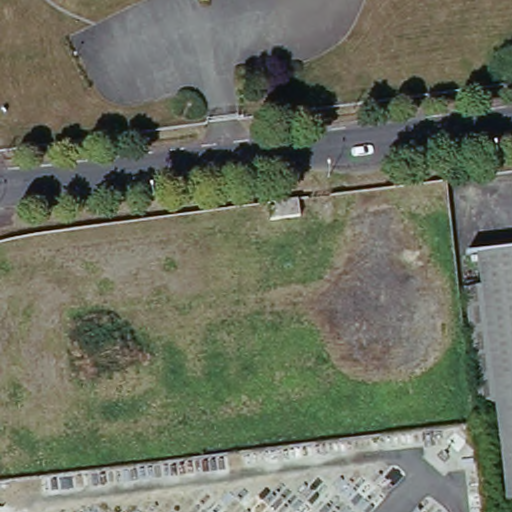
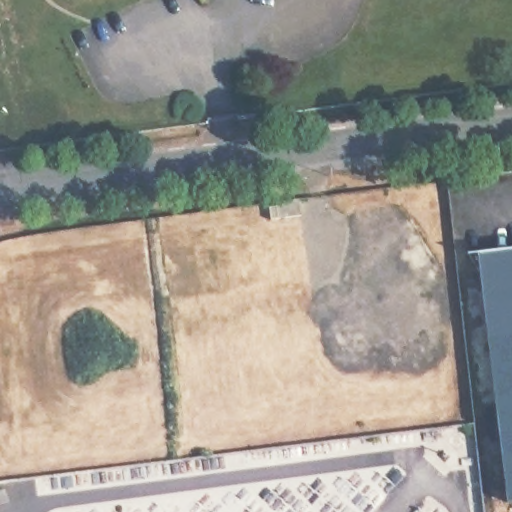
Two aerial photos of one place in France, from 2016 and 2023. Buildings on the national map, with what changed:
unchanged [(275,204),(297,200),(300,216),(270,220),(268,208),(275,207),(275,204)]
unchanged [(473,285),(491,283),(488,257),(512,254),(512,467),(505,408),(487,411),(473,285)]

